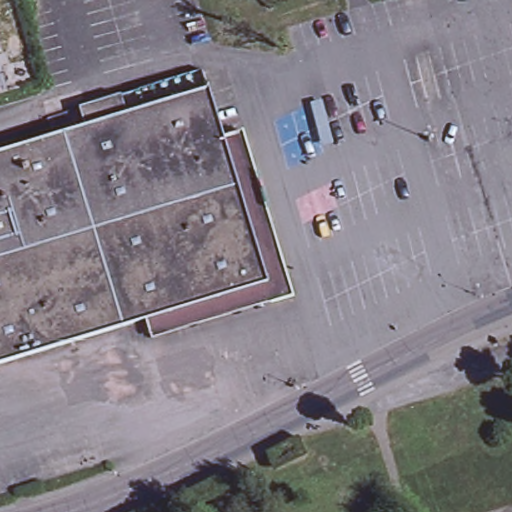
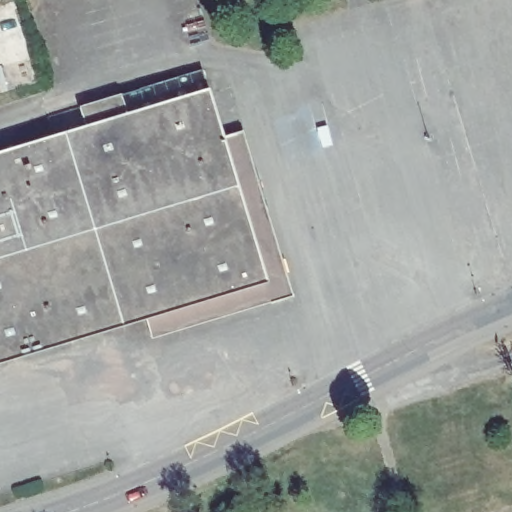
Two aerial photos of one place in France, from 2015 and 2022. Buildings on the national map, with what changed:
unchanged [(6,66),(2,53),(0,46),(0,14),(16,9),(20,22),(23,34),(27,46),(30,59),(37,83),(3,93),(0,94),(0,68),(6,66)]
unchanged [(145,321),(0,365),(0,153),(84,128),(78,108),(119,96),(202,71),(208,90),(222,138),(265,285),(145,321)]
unchanged [(243,132),(285,278),(265,285),(222,138),(243,132)]
unchanged [(292,298),(150,342),(145,321),(265,285),(285,278),(292,298)]

